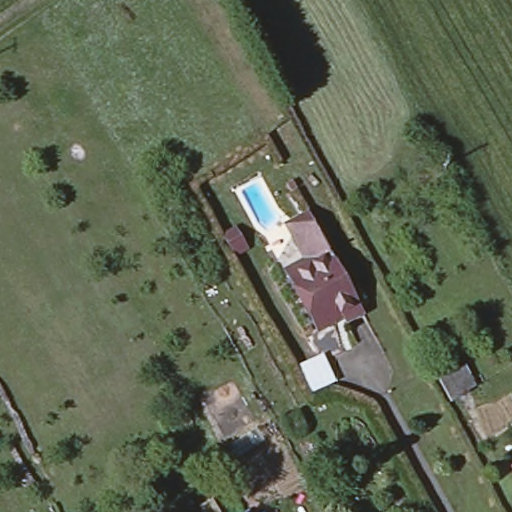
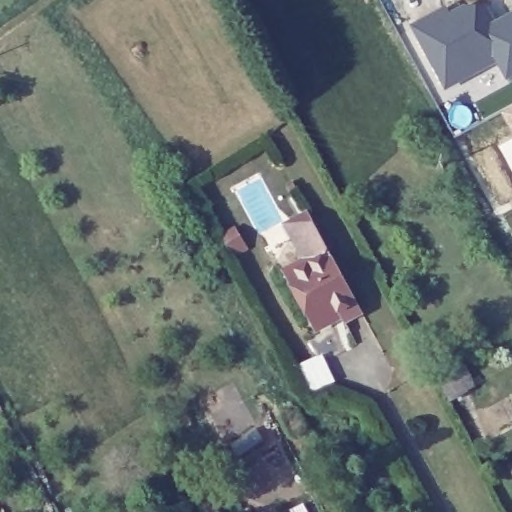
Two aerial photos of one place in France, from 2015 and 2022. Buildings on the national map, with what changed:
new [(449,13),(467,3),(468,5),(478,2),(480,7),(488,5),(495,19),(512,10),(512,77),(507,80),(497,62),(444,91),(410,25),(446,6),(449,13)]
new [(512,104),(512,120),(506,108),(512,104)]
unchanged [(304,261),(292,238),(284,224),(304,213),(311,227),(358,312),(340,321),(338,317),(329,322),(314,295),(298,265),(304,261)]
unchanged [(315,330),(283,273),(298,265),(314,295),(329,322),(315,330)]
unchanged [(306,401),(290,368),(323,353),(339,384),(306,401)]
unchanged [(453,367),(465,390),(451,397),(439,375),(453,367)]
unchanged [(512,467),(512,475),(509,469),(512,467)]

